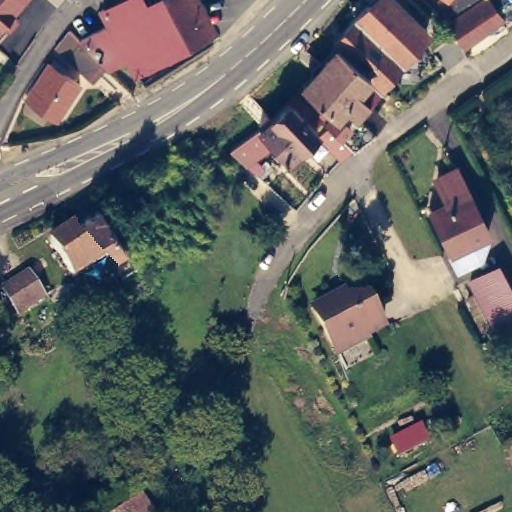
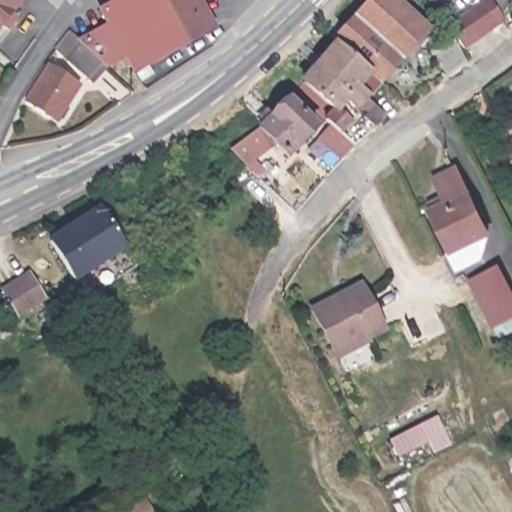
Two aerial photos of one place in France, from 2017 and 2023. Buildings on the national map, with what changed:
unchanged [(26,5),(0,37),(0,0),(32,0),(26,5)]
unchanged [(89,35),(123,16),(116,2),(120,0),(158,0),(202,0),(217,29),(151,65),(143,51),(119,64),(89,35)]
unchanged [(339,27),(366,0),(396,0),(429,31),(432,34),(426,42),(418,35),(379,80),(334,40),(331,37),(331,36),(339,27)]
unchanged [(451,6),(441,0),(457,0),(451,6)]
unchanged [(472,57),(457,36),(469,25),(493,10),(508,30),(472,57)]
unchanged [(75,29),(113,64),(103,75),(68,42),(75,29)]
unchanged [(294,74),(305,60),(307,62),(313,55),(323,53),(334,40),(379,80),(357,105),(374,126),(354,145),(324,119),(293,91),(300,80),(294,74)]
unchanged [(53,63),(82,82),(59,116),(31,96),(53,63)]
unchanged [(285,155),(270,139),(246,161),(233,147),(262,120),(268,115),(293,91),(324,119),(285,155)]
unchanged [(466,179),(489,226),(457,243),(433,196),(466,179)]
unchanged [(104,203),(126,240),(113,248),(113,255),(99,263),(99,267),(91,272),(87,264),(75,271),(53,233),(104,203)]
unchanged [(512,300),(512,308),(487,322),(466,280),(493,265),(512,300)]
unchanged [(0,295),(0,290),(27,278),(38,302),(16,314),(11,315),(3,301),(0,295)]
unchanged [(350,281),(371,323),(326,346),(306,305),(350,281)]
unchanged [(137,512),(114,512),(129,501),(137,512)]

